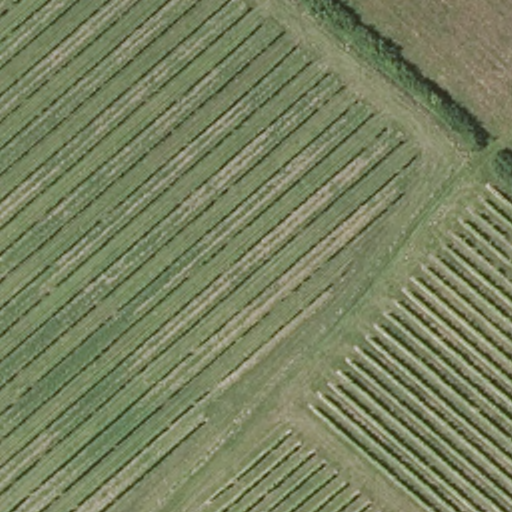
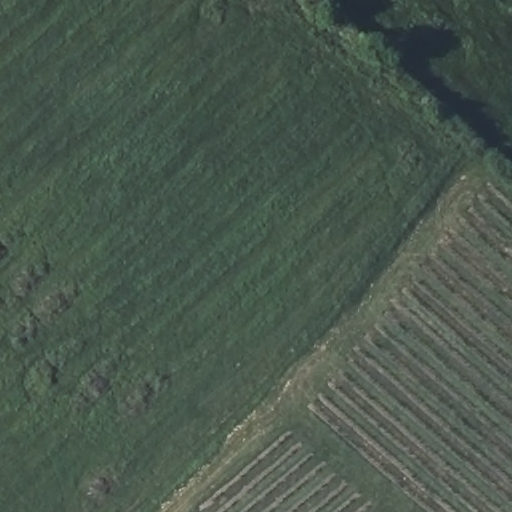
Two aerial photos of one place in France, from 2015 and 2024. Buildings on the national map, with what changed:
[]

